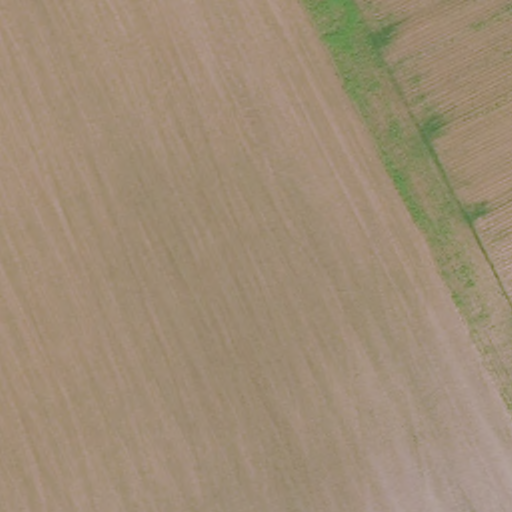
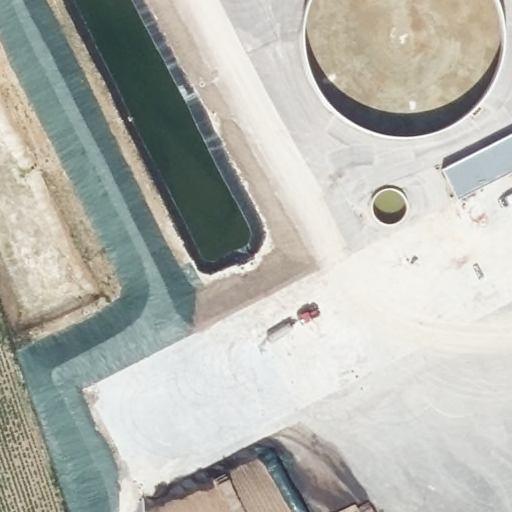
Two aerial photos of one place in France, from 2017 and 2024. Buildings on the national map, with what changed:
new [(440,169),(512,133),(512,172),(457,200),(440,169)]

